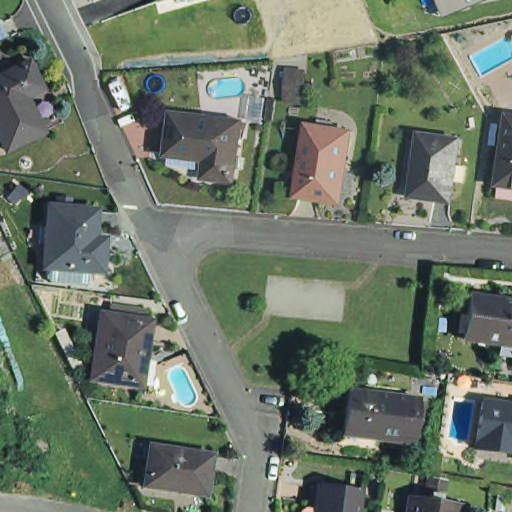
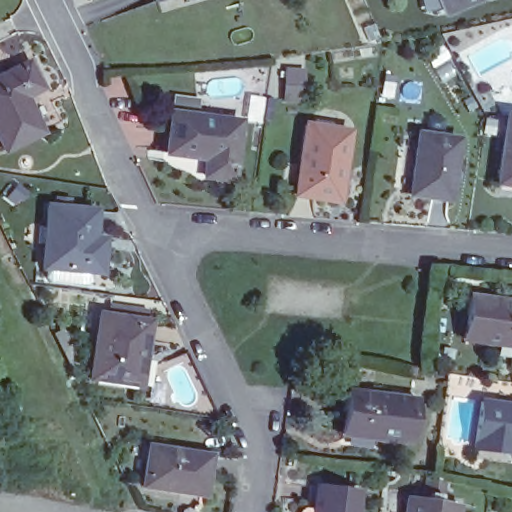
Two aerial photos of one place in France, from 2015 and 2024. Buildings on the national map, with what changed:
unchanged [(153,0),(163,0),(154,3),(153,0)]
unchanged [(435,0),(486,0),(442,17),(435,0)]
unchanged [(41,87),(47,98),(32,106),(49,141),(12,159),(0,135),(0,88),(8,84),(33,71),(41,87)]
unchanged [(250,125),(241,184),(214,179),(216,162),(178,157),(183,116),(250,125)]
unchanged [(359,139),(349,209),(306,203),(316,134),(359,139)]
unchanged [(512,135),(512,186),(504,185),(512,135)]
unchanged [(463,141),(454,204),(415,199),(424,137),(463,141)]
unchanged [(109,247),(108,251),(106,269),(48,264),(54,203),(103,208),(99,237),(110,238),(109,247)]
unchanged [(118,252),(114,286),(46,277),(48,264),(106,269),(108,251),(118,252)]
unchanged [(512,305),(512,349),(469,343),(475,299),(512,305)]
unchanged [(115,327),(116,317),(153,322),(151,331),(154,331),(145,397),(96,390),(105,326),(115,327)]
unchanged [(428,404),(422,446),(353,437),(358,394),(428,404)]
unchanged [(488,404),(512,407),(512,455),(481,451),(488,404)]
unchanged [(215,462),(211,501),(150,493),(154,454),(215,462)]
unchanged [(441,481),(453,483),(450,502),(435,499),(437,480),(441,481)]
unchanged [(310,509),(314,505),(316,505),(319,482),(329,484),(351,487),(366,489),(368,490),(365,512),(309,512),(310,509)]
unchanged [(469,510),(468,512),(417,512),(418,503),(469,510)]

